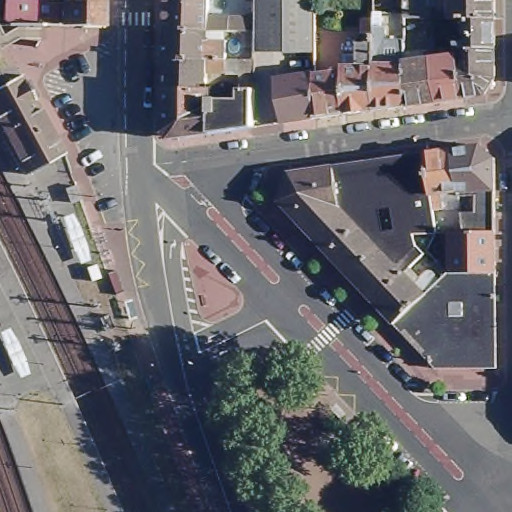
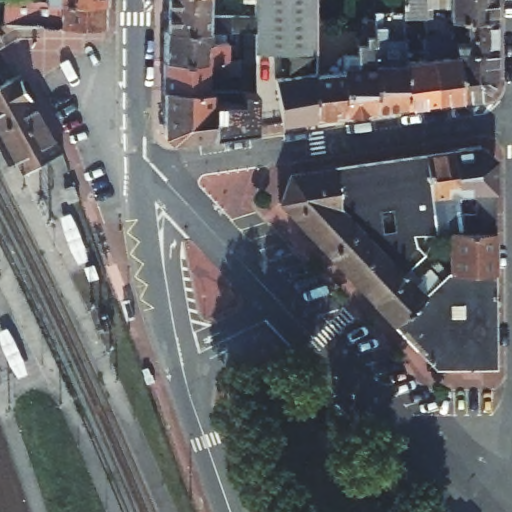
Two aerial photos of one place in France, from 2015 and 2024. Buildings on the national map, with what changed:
unchanged [(103,4),(42,2),(42,0),(103,0),(103,4)]
unchanged [(240,31),(210,31),(163,30),(163,0),(209,0),(210,15),(254,15),(254,0),(313,0),(314,14),(314,36),(314,54),(254,53),(254,60),(254,91),(237,90),(237,76),(205,76),(205,90),(162,90),(163,59),(224,60),(240,60),(240,31)]
unchanged [(495,20),(470,20),(466,20),(451,20),(451,9),(433,9),(434,20),(424,20),(404,20),(404,0),(494,0),(495,20)]
unchanged [(102,29),(6,27),(1,21),(2,1),(42,2),(103,4),(102,29)]
unchanged [(343,116),(342,99),(342,74),(342,56),(356,56),(356,40),(362,32),(362,20),(372,20),(372,25),(372,27),(372,53),(372,65),(372,74),(373,112),(343,116)]
unchanged [(430,66),(430,60),(424,20),(434,20),(437,41),(435,41),(437,59),(456,56),(457,60),(460,82),(461,87),(463,100),(435,103),(430,66)]
unchanged [(495,25),(494,76),(494,79),(494,80),(483,96),(475,97),(463,100),(461,87),(460,82),(457,60),(456,56),(456,53),(455,52),(455,45),(462,44),(464,50),(469,49),(469,35),(466,35),(466,20),(470,20),(495,20),(495,25)]
unchanged [(372,74),(372,65),(372,53),(372,27),(384,27),(384,42),(404,42),(404,52),(404,67),(404,107),(391,110),(373,112),(372,74)]
unchanged [(163,30),(210,31),(210,40),(224,40),(224,60),(163,59),(163,30)]
unchanged [(404,107),(404,67),(404,52),(422,50),(424,61),(430,60),(430,66),(435,103),(404,107)]
unchanged [(0,144),(0,72),(2,71),(10,85),(24,77),(67,157),(30,176),(22,163),(13,168),(0,144)]
unchanged [(315,75),(315,120),(280,125),(275,79),(315,74),(315,75)]
unchanged [(342,99),(343,116),(315,120),(315,75),(342,74),(342,99)]
unchanged [(205,90),(237,90),(254,91),(254,101),(254,109),(254,129),(178,140),(162,125),(162,90),(205,90)]
unchanged [(494,201),(495,234),(462,234),(460,214),(474,214),(474,194),(457,195),(452,151),(462,150),(479,147),(494,160),(494,201)]
unchanged [(430,199),(425,155),(452,151),(457,195),(458,201),(444,204),(445,210),(432,212),(430,199)]
unchanged [(427,252),(423,256),(409,269),(401,275),(372,303),(358,287),(333,261),(306,232),(277,202),(289,174),(377,161),(425,155),(430,199),(432,212),(435,235),(427,252)]
unchanged [(495,274),(449,274),(449,235),(462,234),(495,234),(495,274)]
unchanged [(409,269),(418,280),(428,270),(439,281),(392,325),(386,317),(372,303),(401,275),(409,269)]
unchanged [(446,274),(449,274),(495,274),(495,316),(495,370),(435,370),(424,358),(410,342),(392,325),(439,281),(446,274)]

